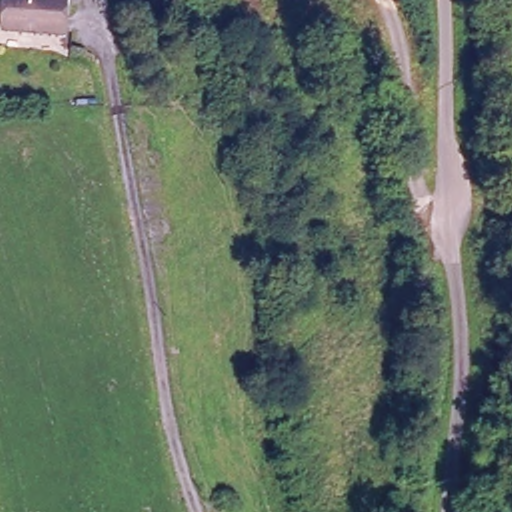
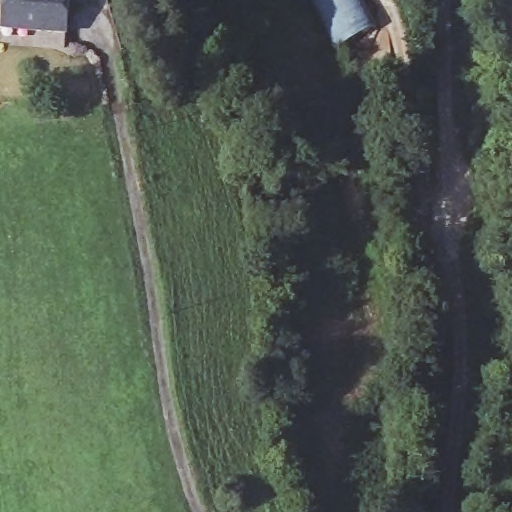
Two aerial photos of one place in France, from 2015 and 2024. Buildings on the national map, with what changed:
unchanged [(70,33),(4,30),(2,0),(69,0),(70,33)]
new [(334,48),(309,0),(364,0),(377,26),(334,48)]

